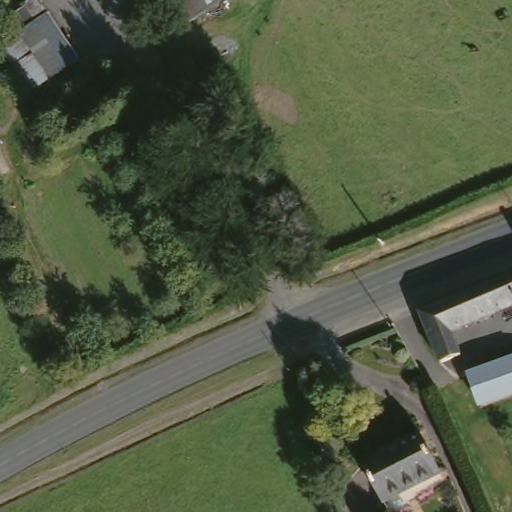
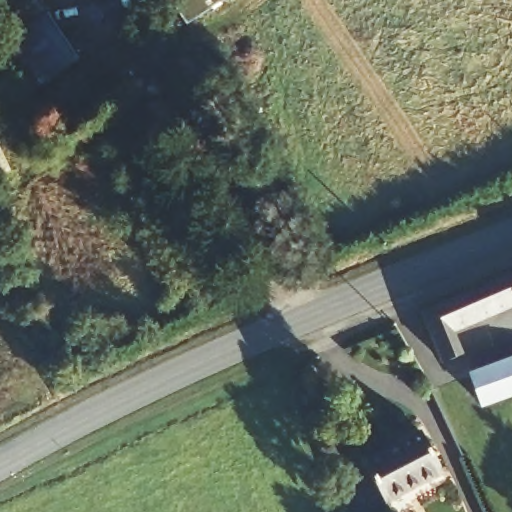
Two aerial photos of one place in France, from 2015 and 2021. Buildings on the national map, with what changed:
unchanged [(22,87),(10,60),(35,49),(14,4),(24,0),(50,0),(78,63),(22,87)]
unchanged [(224,0),(226,3),(193,26),(176,0),(224,0)]
unchanged [(224,0),(232,0),(226,3),(224,0)]
unchanged [(495,285),(512,279),(512,312),(506,314),(495,285)]
unchanged [(495,285),(506,314),(456,334),(466,358),(445,367),(422,316),(495,285)]
unchanged [(475,374),(512,359),(512,397),(488,407),(475,374)]
unchanged [(450,472),(386,500),(368,461),(431,432),(450,472)]

